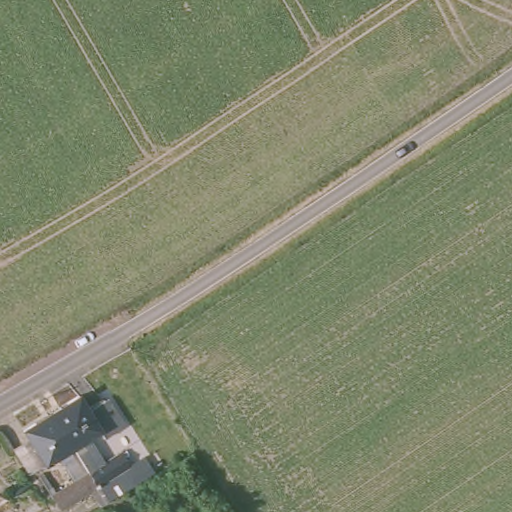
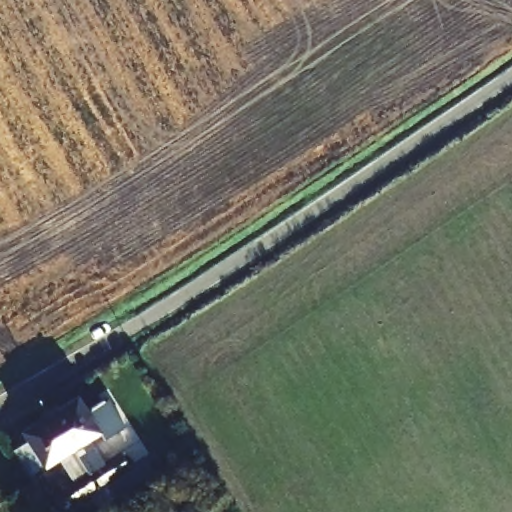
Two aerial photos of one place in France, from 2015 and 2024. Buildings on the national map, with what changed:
unchanged [(80,395),(87,410),(108,398),(126,425),(105,438),(101,431),(91,440),(103,463),(121,452),(130,466),(144,457),(153,473),(99,507),(90,492),(60,510),(39,475),(44,471),(56,492),(86,475),(87,473),(75,447),(43,466),(30,475),(15,450),(27,440),(22,431),(80,395)]

